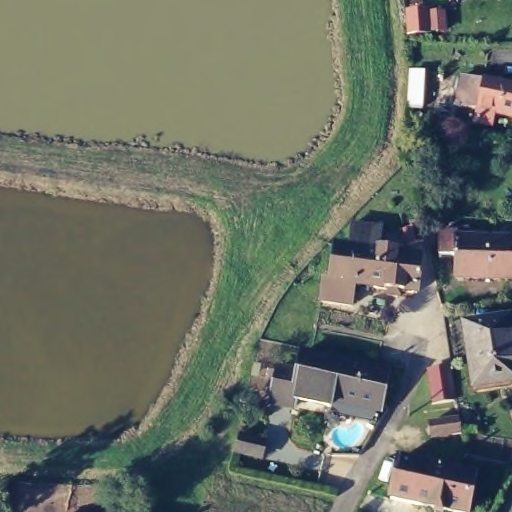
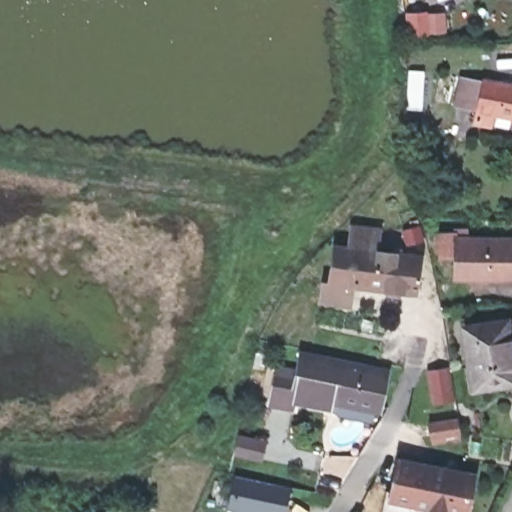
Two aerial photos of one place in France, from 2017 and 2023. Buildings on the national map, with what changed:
unchanged [(505,121),(487,117),(488,108),(480,107),(469,105),(472,76),(484,77),(512,80),(512,111),(507,111),(505,121)]
unchanged [(337,242),(350,243),(355,223),(382,227),(380,247),(422,254),(417,290),(400,289),(399,295),(390,293),(390,287),(355,282),(351,302),(322,298),(327,272),(332,272),(337,242)]
unchanged [(453,257),(439,256),(437,229),(453,230),(455,237),(512,237),(512,275),(454,273),(453,257)]
unchanged [(512,325),(512,380),(497,383),(495,380),(480,382),(470,326),(511,320),(512,325)]
unchanged [(386,363),(379,400),(332,392),(330,399),(294,392),(292,399),(272,395),(277,365),(299,368),(304,347),(386,363)]
unchanged [(449,363),(454,393),(435,397),(429,375),(429,367),(449,363)]
unchanged [(462,418),(462,438),(437,437),(437,417),(462,418)]
unchanged [(477,471),(470,507),(397,494),(404,458),(477,471)]
new [(285,512),(244,512),(227,508),(235,475),(290,487),(285,512)]

